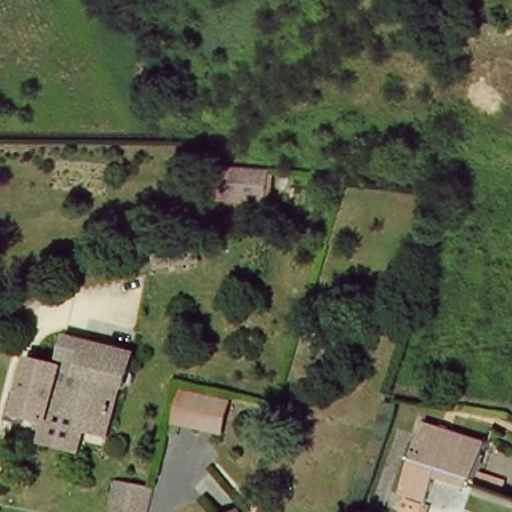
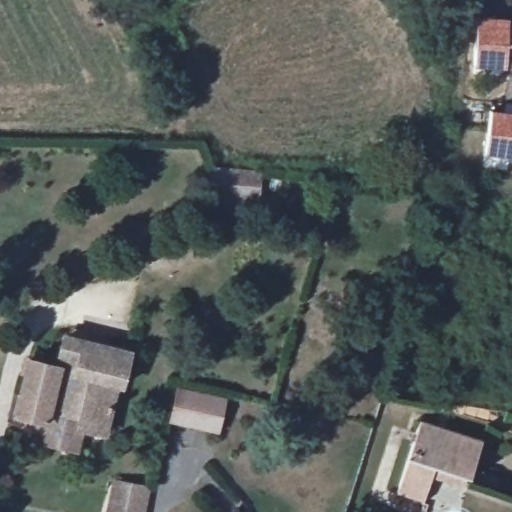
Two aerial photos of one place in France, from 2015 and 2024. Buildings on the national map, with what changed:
new [(482,66),(485,20),(512,21),(512,68),(482,66)]
new [(499,113),(512,114),(512,156),(492,153),(499,113)]
unchanged [(221,201),(225,169),(266,173),(263,205),(221,201)]
unchanged [(191,242),(193,256),(154,265),(151,250),(191,242)]
unchanged [(47,440),(52,421),(22,414),(35,361),(63,368),(66,358),(64,357),(69,336),(133,352),(125,385),(121,384),(109,434),(84,428),(79,447),(47,440)]
unchanged [(213,429),(172,419),(179,388),(220,397),(227,399),(220,430),(213,429)]
unchanged [(467,480),(432,468),(423,500),(395,491),(418,420),(480,440),(467,480)]
unchanged [(120,489),(150,496),(146,512),(115,512),(120,489)]
unchanged [(238,508),(240,512),(230,512),(238,508)]

